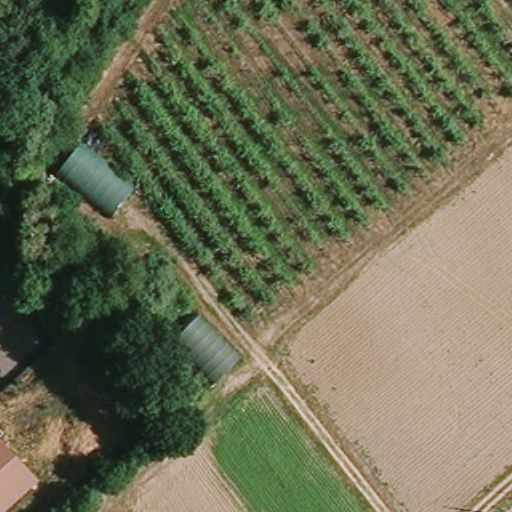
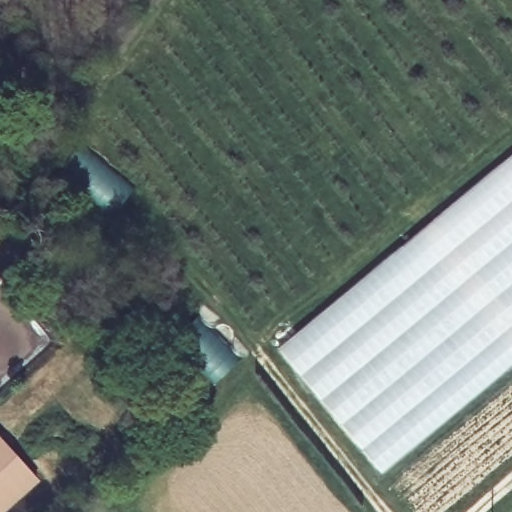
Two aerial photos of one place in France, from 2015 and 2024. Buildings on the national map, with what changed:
unchanged [(134,186),(108,219),(56,175),(80,146),(134,186)]
new [(475,182),(512,152),(512,363),(452,414),(380,473),(275,347),(475,182)]
demolished [(457,501),(445,512),(420,512),(284,336),(311,312),(457,501)]
unchanged [(207,313),(247,355),(215,386),(177,345),(207,313)]
demolished [(268,382),(370,512),(299,512),(226,418),(268,382)]
unchanged [(43,486),(12,512),(0,512),(0,434),(43,486)]

